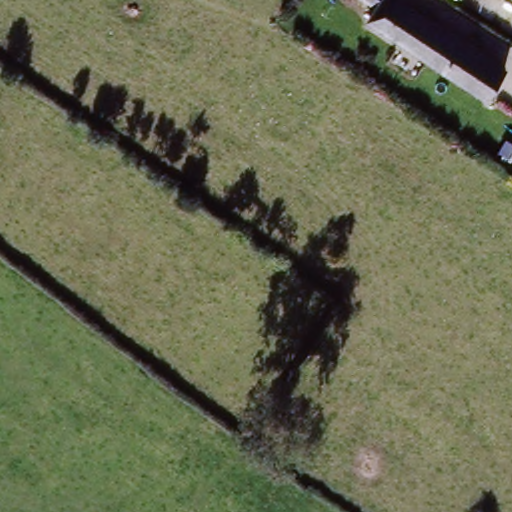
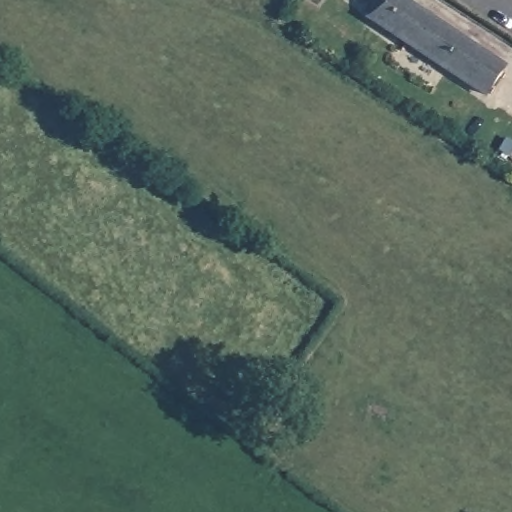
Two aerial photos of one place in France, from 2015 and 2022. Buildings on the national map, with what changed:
unchanged [(357,0),(397,0),(512,69),(512,85),(504,99),(360,15),(365,5),(357,0)]

